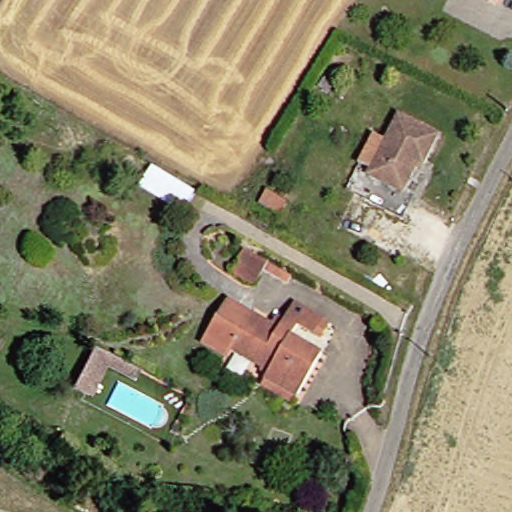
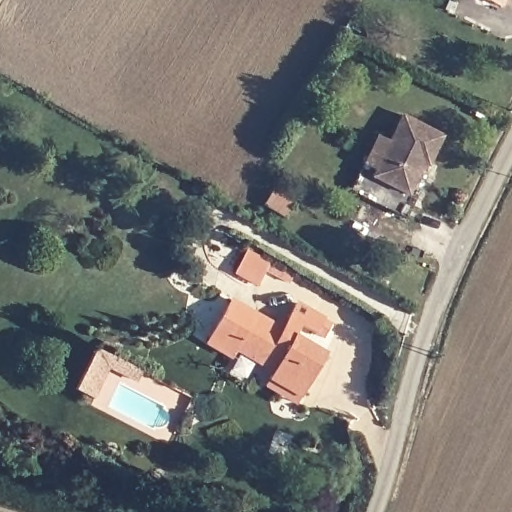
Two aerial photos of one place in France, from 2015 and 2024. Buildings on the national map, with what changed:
unchanged [(481,0),(505,0),(500,9),(481,0)]
unchanged [(405,120),(444,141),(430,170),(425,168),(409,199),(418,203),(408,222),(352,192),(362,174),(373,180),(405,120)]
unchanged [(260,206),(269,191),(293,205),(285,221),(260,206)]
unchanged [(286,281),(260,266),(253,281),(236,272),(231,269),(242,249),(247,252),(263,260),(290,275),(286,281)]
unchanged [(240,355),(236,362),(210,348),(234,304),(281,330),(297,305),(326,321),(318,336),(302,327),(296,340),(313,349),(327,357),(325,363),(305,400),(272,383),(277,375),(266,370),(240,355)]
unchanged [(100,348),(150,368),(141,387),(114,371),(100,402),(79,390),(100,348)]

